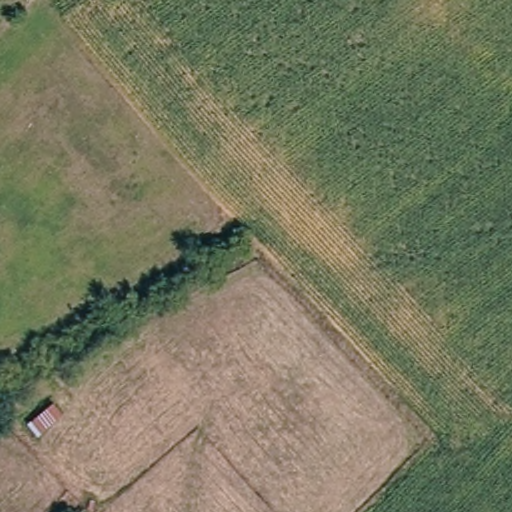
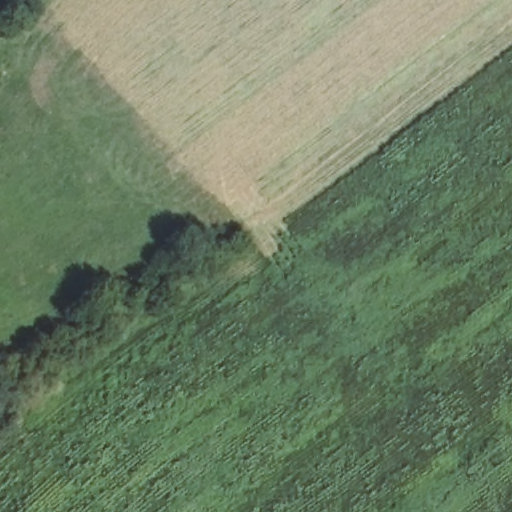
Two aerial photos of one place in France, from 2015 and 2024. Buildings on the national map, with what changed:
unchanged [(63,418),(43,436),(35,426),(55,409),(63,418)]

